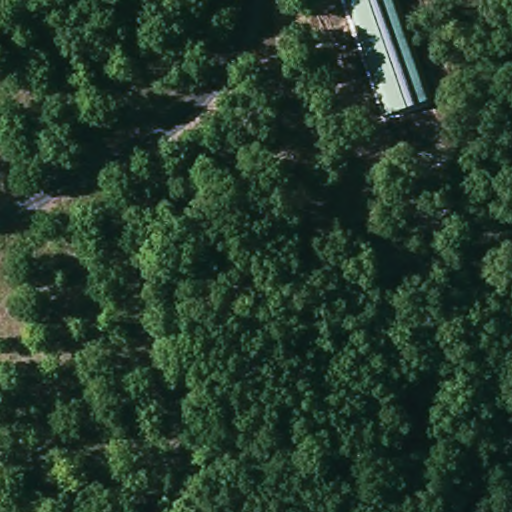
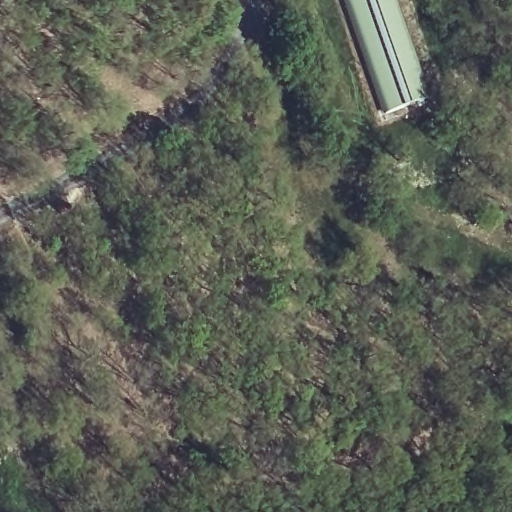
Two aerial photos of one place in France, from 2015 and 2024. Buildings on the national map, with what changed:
unchanged [(349,0),(396,0),(420,69),(376,82),(349,0)]

